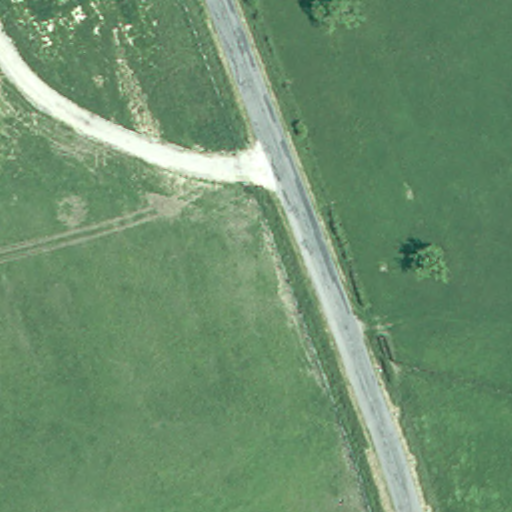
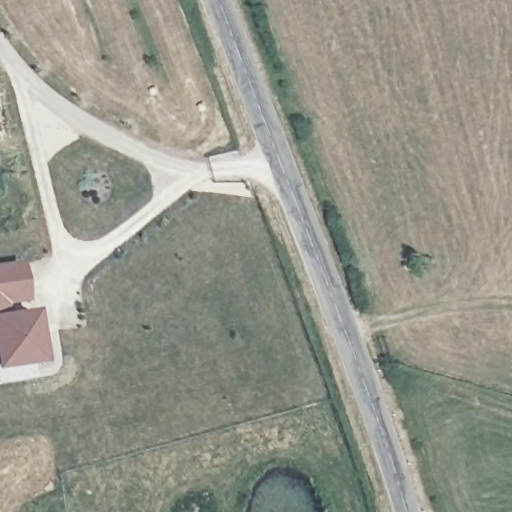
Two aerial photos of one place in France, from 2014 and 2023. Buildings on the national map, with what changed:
new [(31,312),(37,311),(44,367),(0,373),(0,267),(23,264),(31,312)]

